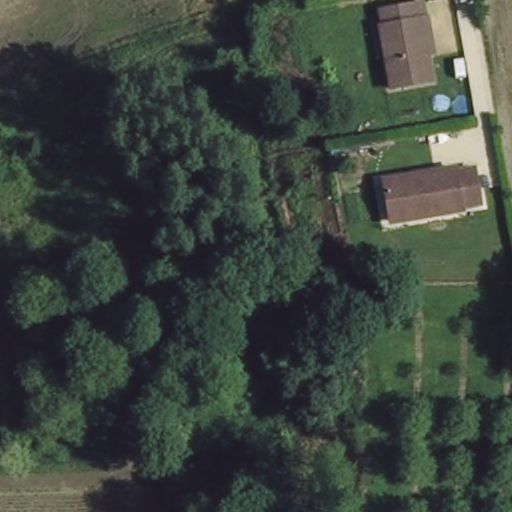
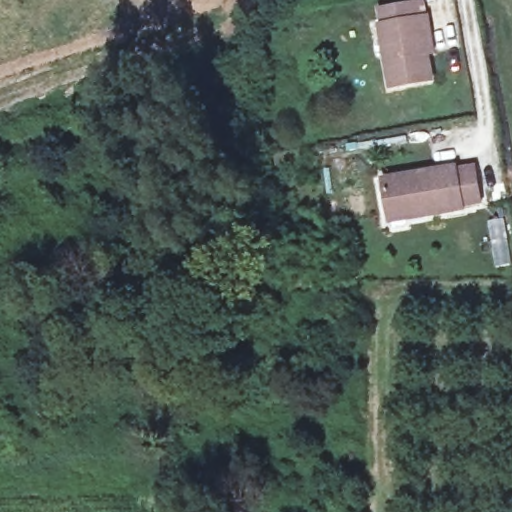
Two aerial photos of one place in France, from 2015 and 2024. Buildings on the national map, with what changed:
unchanged [(384,19),(389,19),(387,6),(421,0),(424,0),(427,14),(432,13),(435,30),(438,48),(429,50),(434,74),(394,83),(384,19)]
unchanged [(396,213),(389,177),(465,164),(467,172),(481,169),(487,200),(471,204),(472,209),(412,219),(409,210),(396,213)]

